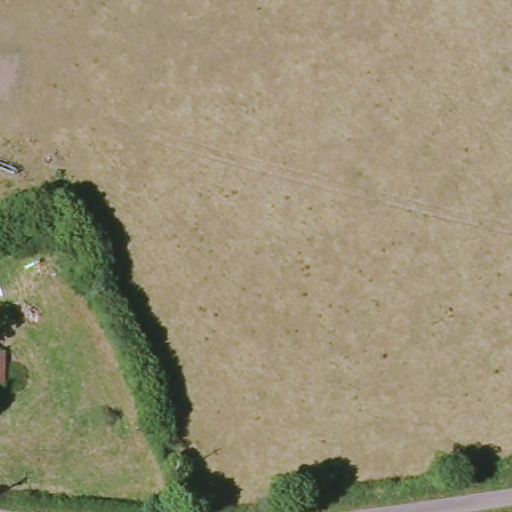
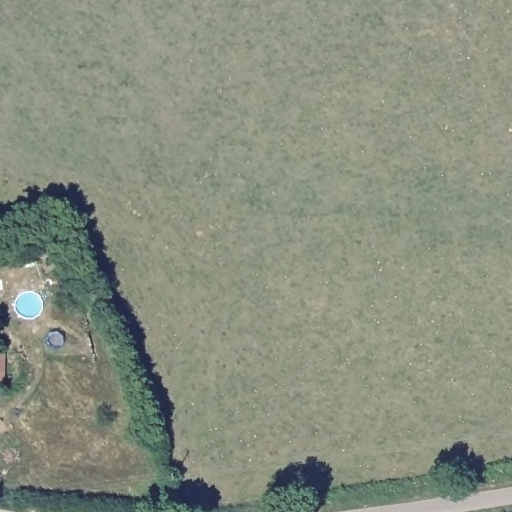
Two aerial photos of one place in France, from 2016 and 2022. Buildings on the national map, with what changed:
unchanged [(3,385),(0,385),(0,352),(4,352),(3,385)]

